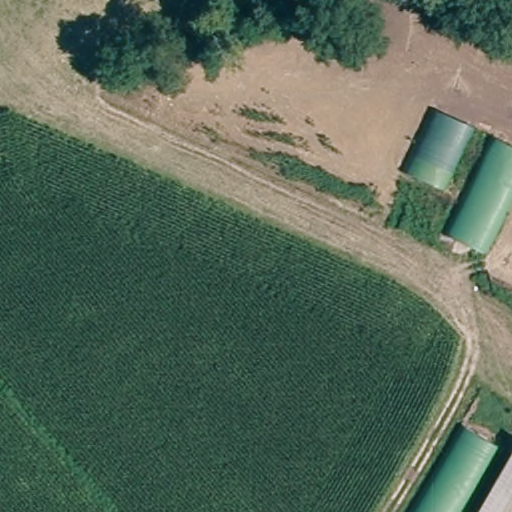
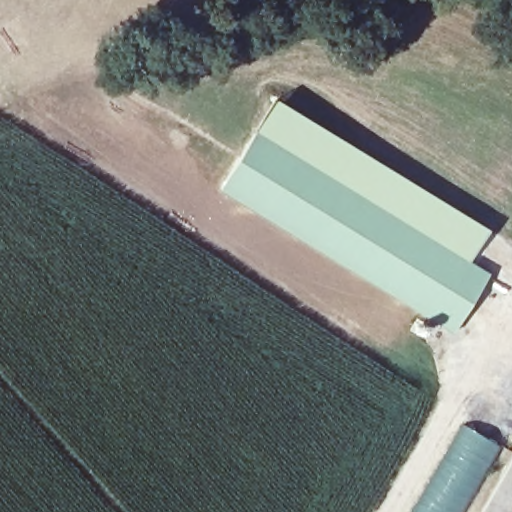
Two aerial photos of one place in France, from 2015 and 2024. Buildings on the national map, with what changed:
new [(488,230),(469,261),(257,131),(275,100),(488,230)]
demolished [(441,196),(401,176),(430,107),(475,126),(441,196)]
new [(219,190),(257,131),(489,275),(452,335),(219,190)]
demolished [(450,231),(499,132),(512,139),(512,202),(489,250),(450,231)]
unchanged [(412,512),(461,426),(500,450),(464,512),(412,512)]
unchanged [(512,512),(476,512),(512,445),(512,512)]

